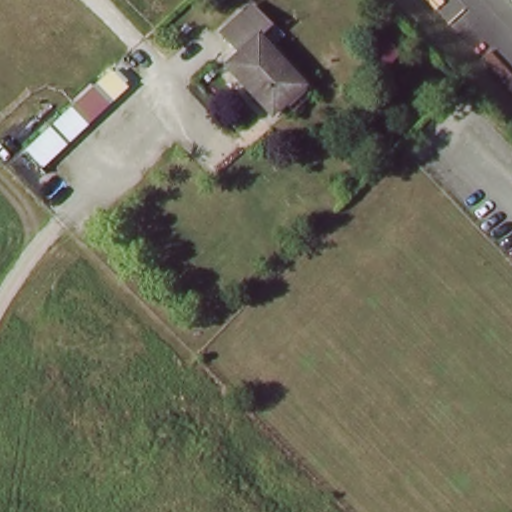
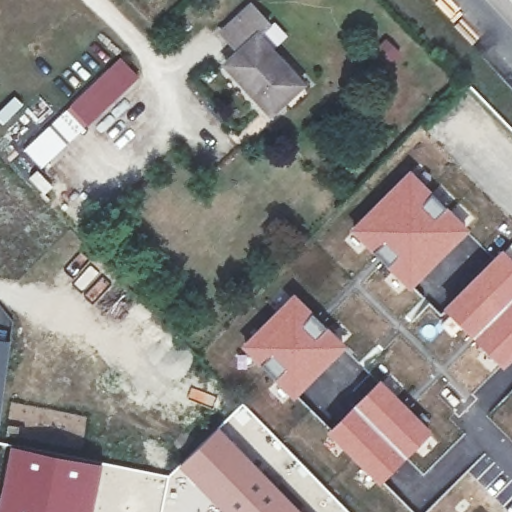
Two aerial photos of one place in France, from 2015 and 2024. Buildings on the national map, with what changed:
unchanged [(215,35),(247,2),(294,39),(277,53),(258,31),(234,54),(215,35)]
unchanged [(220,66),(234,54),(258,31),(277,53),(306,85),(269,117),(220,66)]
unchanged [(109,65),(128,87),(90,124),(72,106),(109,65)]
new [(410,168),(470,229),(410,289),(350,229),(410,168)]
new [(512,241),(512,359),(503,368),(443,308),(485,264),(512,241)]
new [(294,291),(347,346),(294,399),(241,345),(294,291)]
new [(11,339),(0,426),(0,337),(11,339)]
new [(380,378),(433,432),(381,484),(327,431),(380,378)]
new [(242,401),(350,512),(305,512),(218,425),(242,401)]
new [(218,425),(305,512),(223,512),(178,466),(218,425)]
new [(9,443),(103,462),(95,512),(0,512),(0,490),(9,443)]
new [(103,462),(170,475),(161,512),(95,512),(103,462)]

